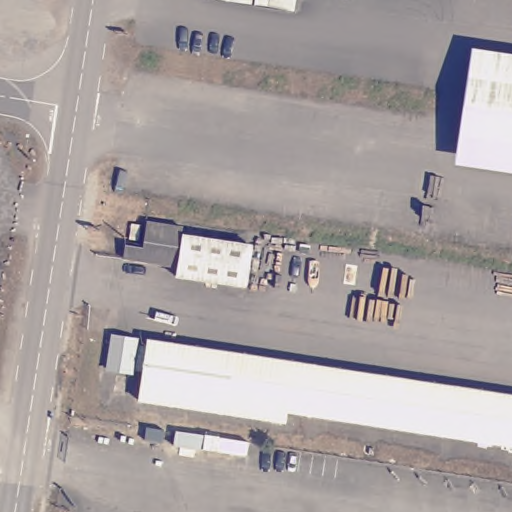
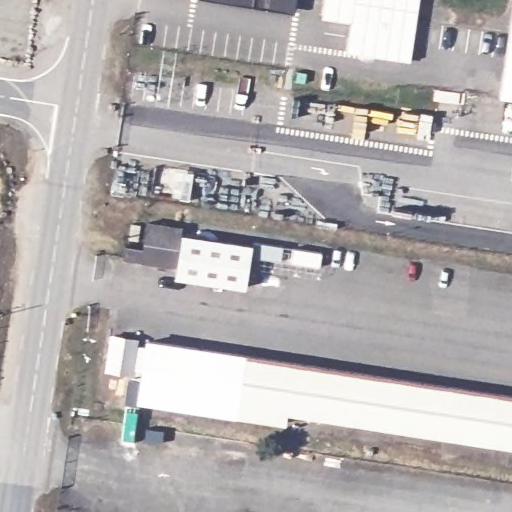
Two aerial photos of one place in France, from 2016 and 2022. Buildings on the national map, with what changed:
unchanged [(290,6),(242,0),(290,0),(290,6)]
new [(326,0),(420,0),(410,64),(347,55),(351,25),(322,20),(326,0)]
new [(512,15),(512,98),(500,96),(512,15)]
demolished [(512,174),(456,165),(473,50),(512,56),(512,174)]
unchanged [(145,226),(144,238),(134,237),(136,224),(145,226)]
unchanged [(130,245),(149,249),(154,226),(188,230),(187,238),(256,249),(249,288),(181,278),(182,268),(126,259),(130,245)]
unchanged [(127,332),(122,367),(105,364),(112,329),(127,332)]
unchanged [(512,442),(280,405),(277,418),(135,395),(140,367),(126,365),(131,342),(143,345),(144,335),(512,393),(512,442)]
unchanged [(139,441),(141,430),(158,432),(156,444),(139,441)]

